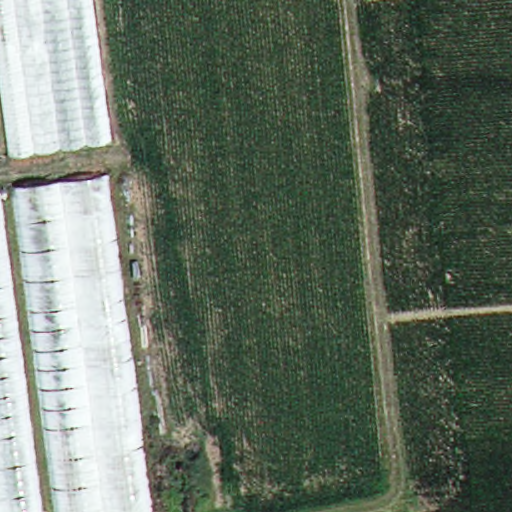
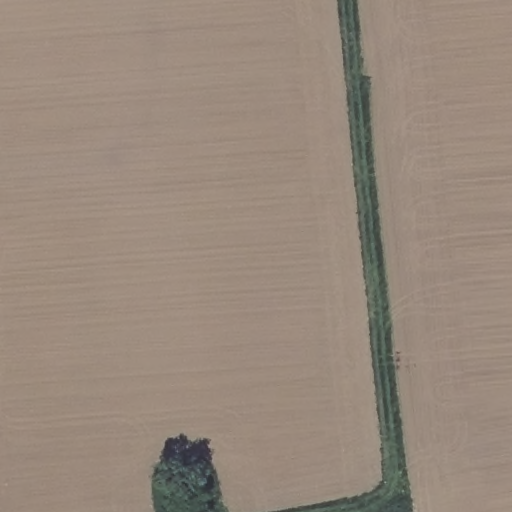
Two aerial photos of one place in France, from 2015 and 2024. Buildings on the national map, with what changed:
demolished [(0,136),(0,0),(84,0),(102,136),(2,148),(0,136)]
demolished [(4,185),(95,173),(138,512),(48,512),(4,185)]
demolished [(31,512),(0,512),(0,275),(31,512)]

